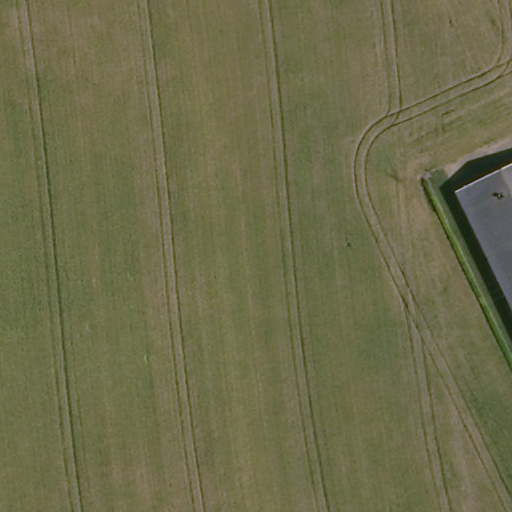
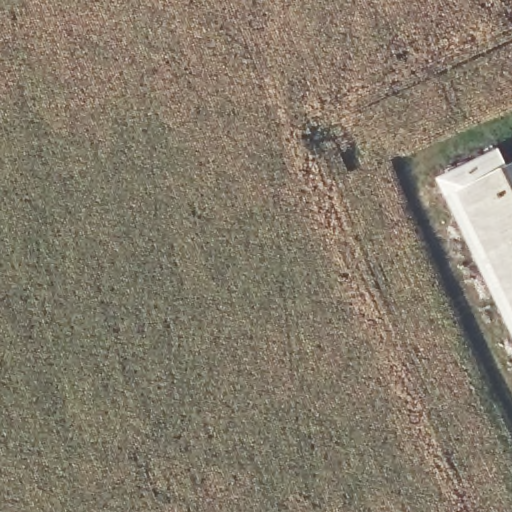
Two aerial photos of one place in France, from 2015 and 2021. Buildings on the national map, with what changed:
unchanged [(512,165),(512,297),(460,191),(512,165)]

